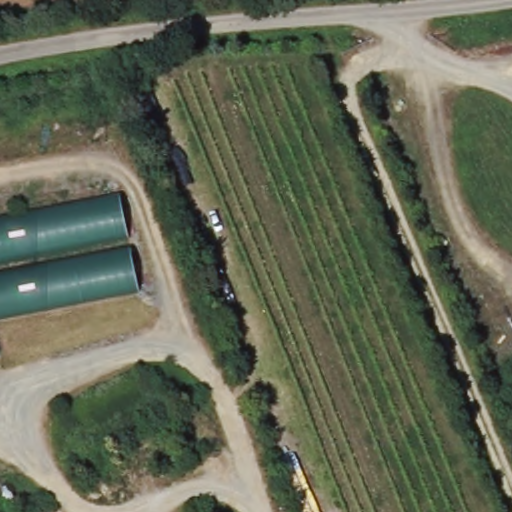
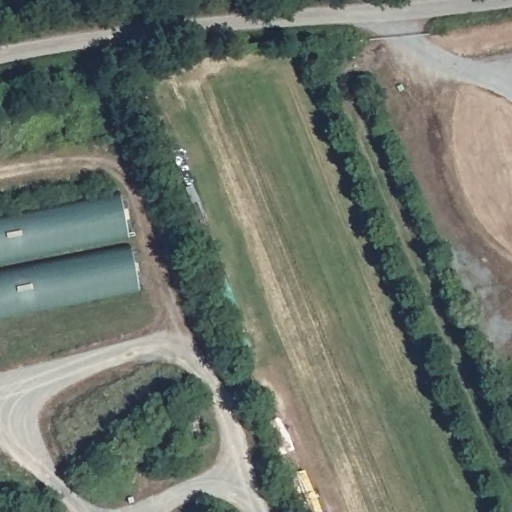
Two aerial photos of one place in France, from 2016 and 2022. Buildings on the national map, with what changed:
unchanged [(125,190),(145,289),(0,317),(0,216),(125,190)]

